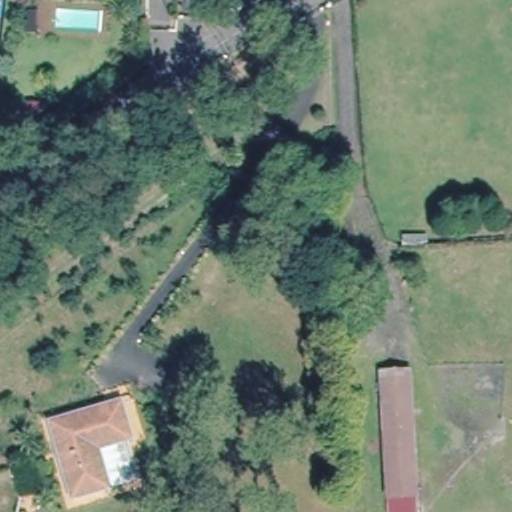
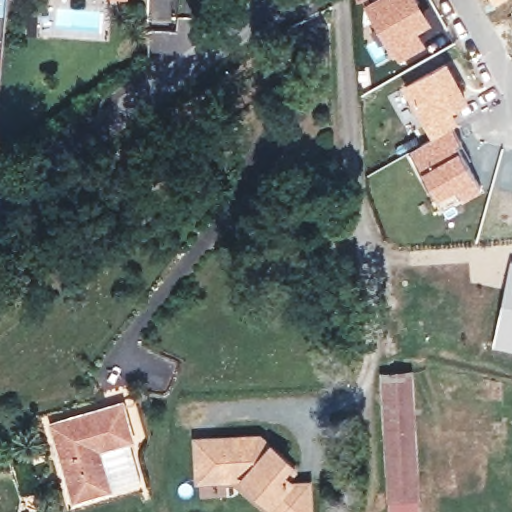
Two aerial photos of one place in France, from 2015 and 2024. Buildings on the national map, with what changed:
new [(367,0),(419,0),(432,22),(418,30),(426,43),(397,59),(362,2),(367,0)]
new [(493,2),(492,0),(498,0),(493,2)]
new [(447,60),(468,100),(451,111),(457,124),(453,126),(430,137),(401,86),(447,60)]
unchanged [(0,162),(0,134),(1,125),(10,124),(8,162),(6,162),(0,162)]
new [(430,137),(453,126),(482,189),(462,200),(455,187),(437,198),(408,150),(430,137)]
new [(512,261),(512,348),(492,344),(510,261),(512,261)]
unchanged [(388,472),(383,377),(414,375),(421,499),(421,512),(390,512),(390,500),(388,472)]
unchanged [(100,451),(111,488),(72,500),(51,425),(121,402),(133,440),(100,451)]
new [(296,463),(287,471),(296,478),(312,478),(313,512),(269,512),(268,504),(238,480),(195,482),(192,436),(261,432),(296,463)]
unchanged [(145,480),(111,488),(100,451),(133,440),(145,480)]

